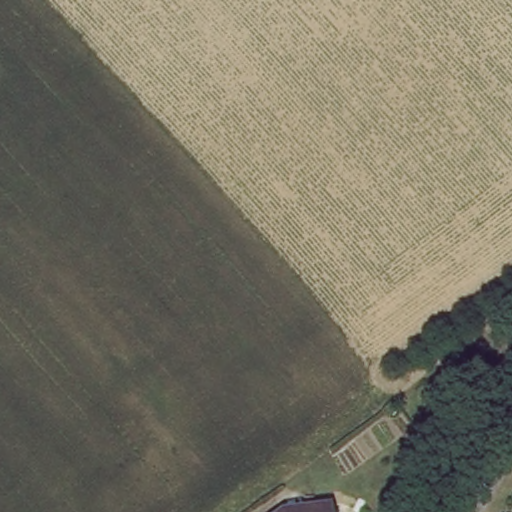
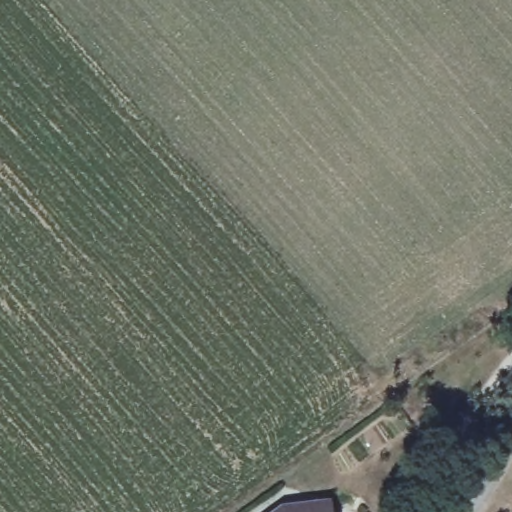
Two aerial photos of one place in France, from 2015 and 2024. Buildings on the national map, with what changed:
unchanged [(323,504),(323,512),(273,512),(278,508),(323,504)]

